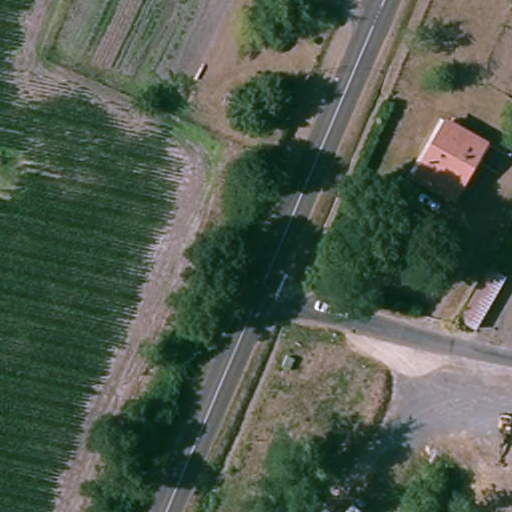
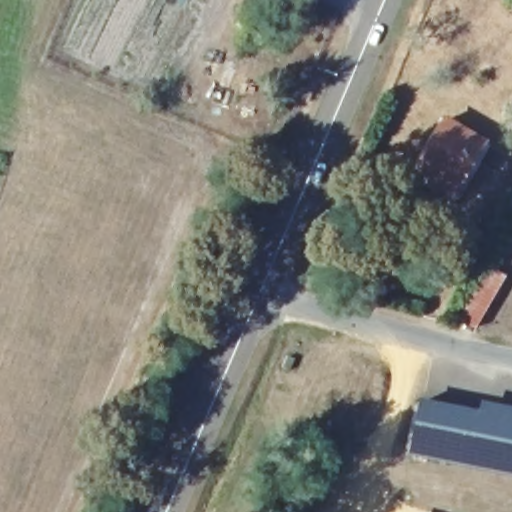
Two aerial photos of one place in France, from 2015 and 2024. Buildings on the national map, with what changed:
unchanged [(479,145),(445,198),(408,177),(438,121),(479,145)]
unchanged [(476,329),(459,319),(489,266),(507,275),(476,329)]
new [(421,399),(481,410),(483,401),(512,407),(512,473),(410,453),(421,399)]

